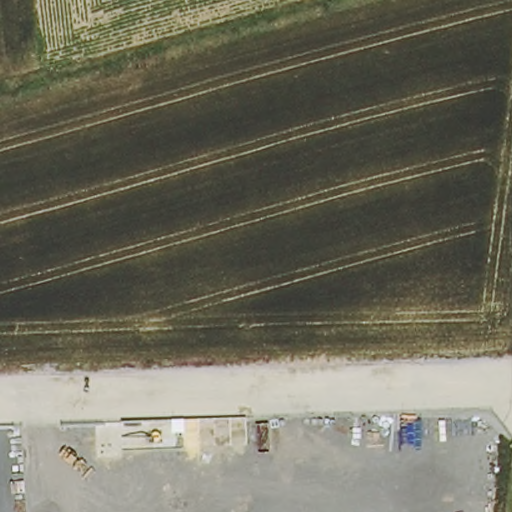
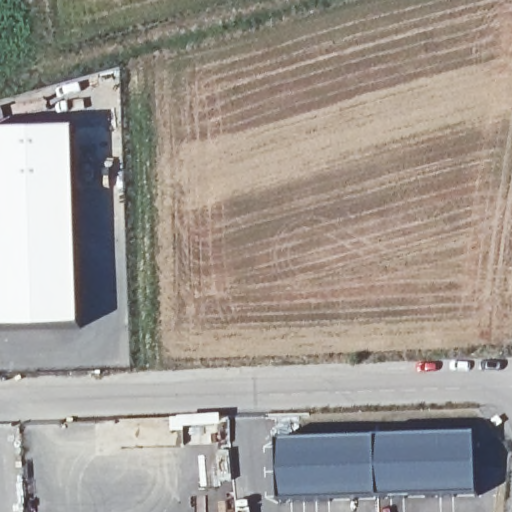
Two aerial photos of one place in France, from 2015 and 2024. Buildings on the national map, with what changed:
new [(72,125),(77,235),(80,326),(0,329),(0,129),(72,125)]
new [(477,434),(480,495),(280,503),(279,442),(477,434)]

